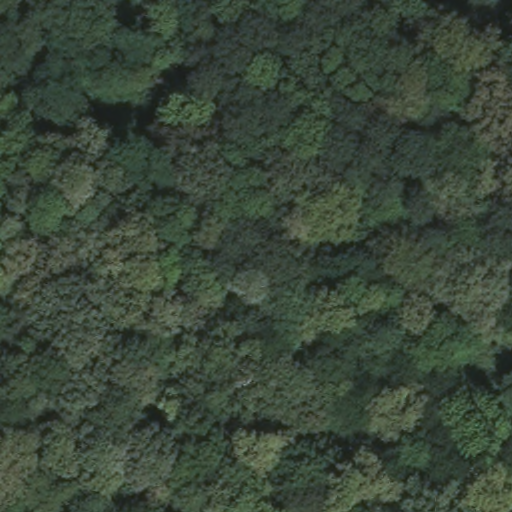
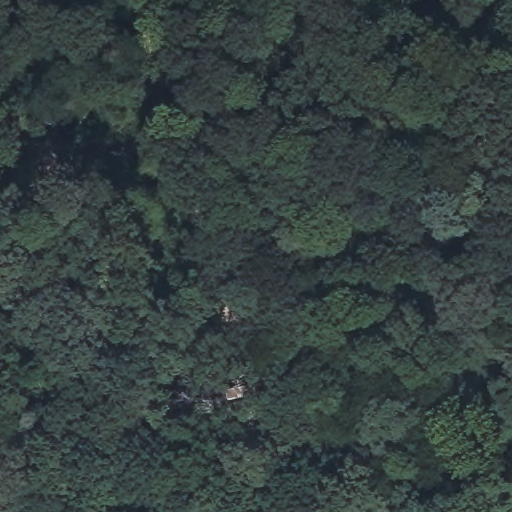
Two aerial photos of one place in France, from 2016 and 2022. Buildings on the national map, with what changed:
unchanged [(245,423),(253,451),(228,461),(221,432),(245,423)]

